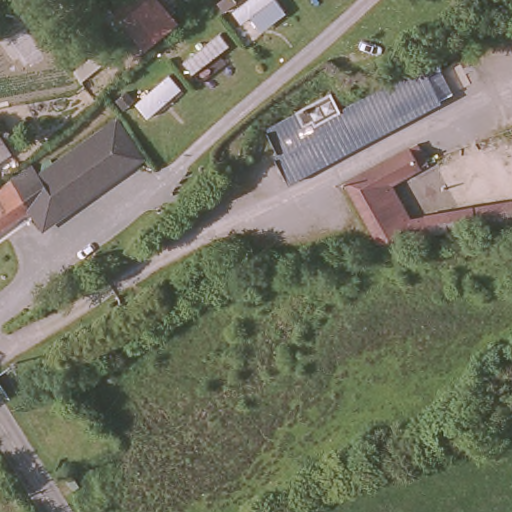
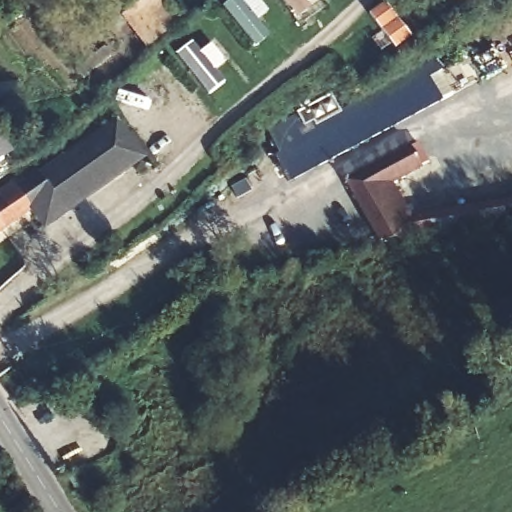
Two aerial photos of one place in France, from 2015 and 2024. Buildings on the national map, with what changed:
unchanged [(150,0),(121,22),(111,10),(123,0),(150,0)]
unchanged [(145,53),(135,38),(166,12),(177,26),(145,53)]
unchanged [(290,129),(335,103),(340,113),(422,74),(427,86),(438,109),(280,186),(260,146),(290,129)]
unchanged [(0,195),(34,175),(39,183),(117,126),(145,164),(43,237),(29,217),(9,229),(0,216),(0,195)]
unchanged [(342,188),(340,183),(407,153),(415,149),(425,169),(417,172),(387,185),(402,221),(453,212),(467,210),(475,231),(435,235),(373,247),(346,196),(345,192),(342,188)]
unchanged [(0,162),(0,154),(4,160),(0,162)]
unchanged [(467,210),(512,203),(512,229),(483,230),(475,231),(467,210)]
unchanged [(0,234),(0,216),(9,229),(0,234)]

